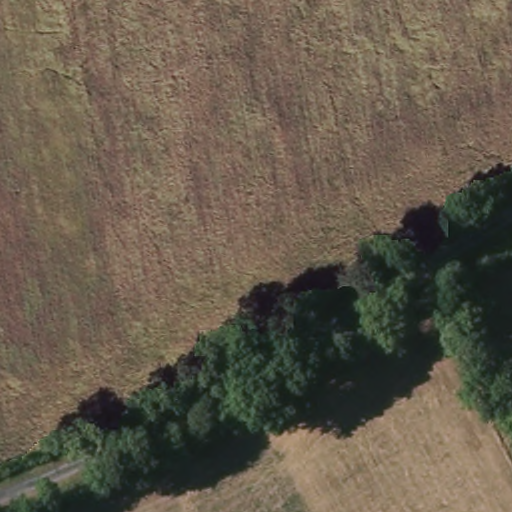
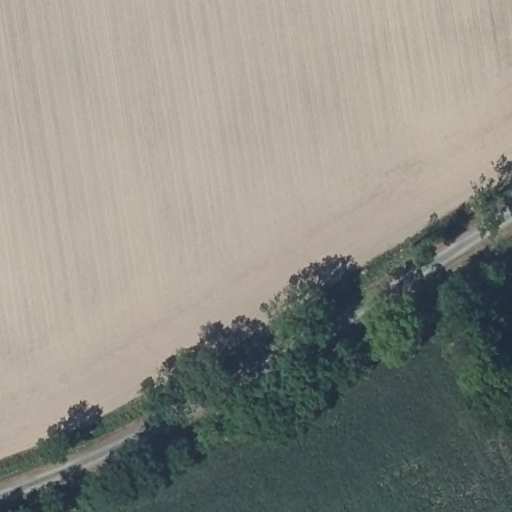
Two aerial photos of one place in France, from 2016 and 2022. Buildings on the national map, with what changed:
[]

